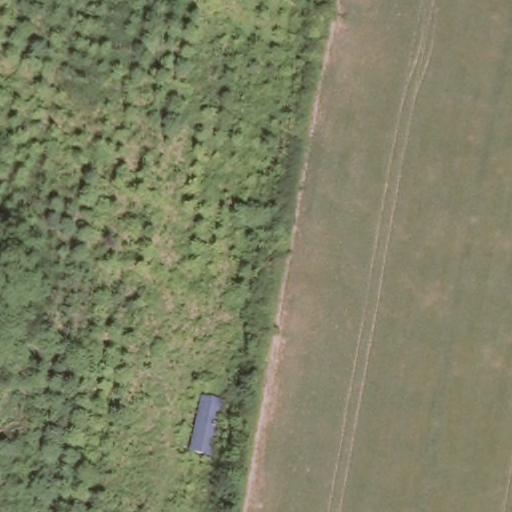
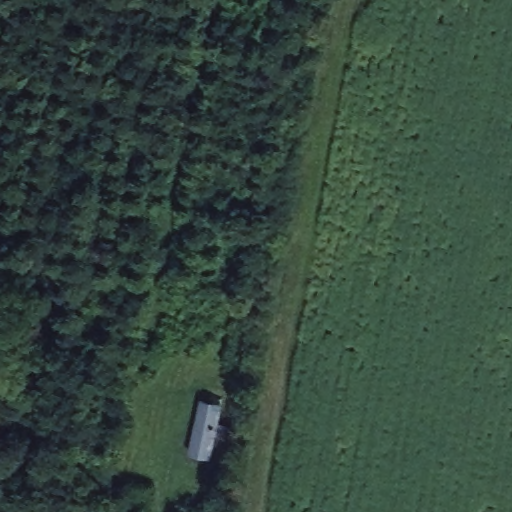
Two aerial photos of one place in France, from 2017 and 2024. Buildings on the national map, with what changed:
unchanged [(220,401),(207,458),(184,450),(195,397),(220,401)]

